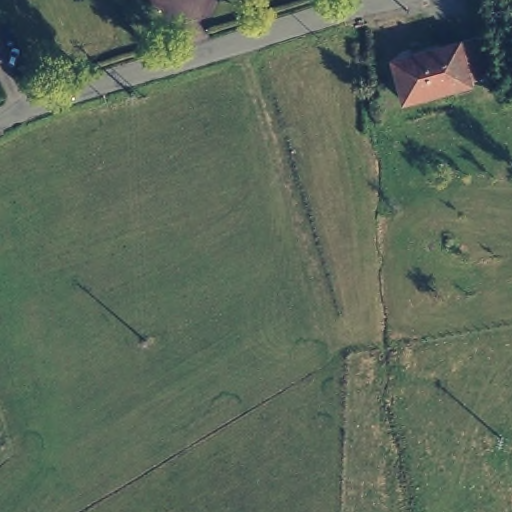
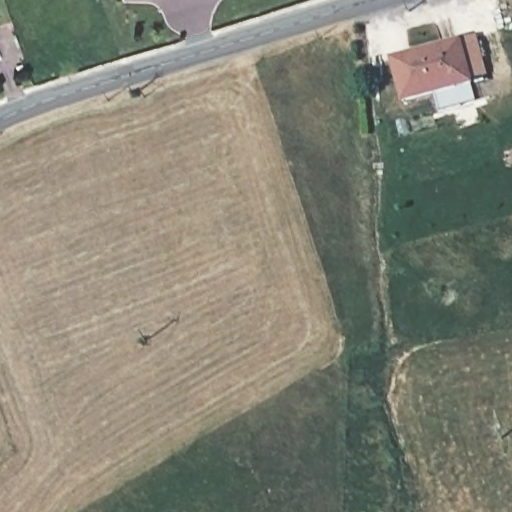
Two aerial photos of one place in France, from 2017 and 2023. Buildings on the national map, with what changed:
unchanged [(400,100),(389,61),(456,44),(457,46),(473,42),(483,74),(466,78),(468,83),(400,100)]

